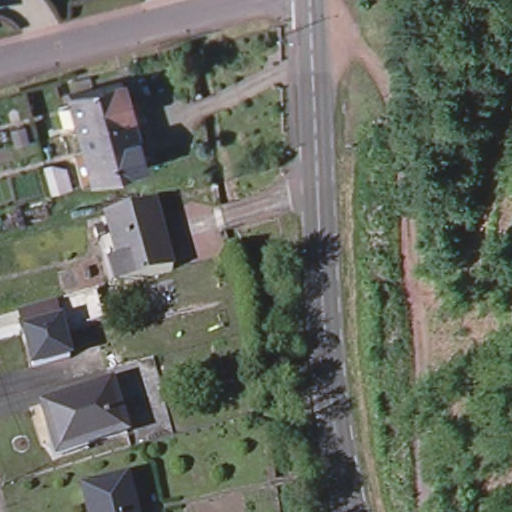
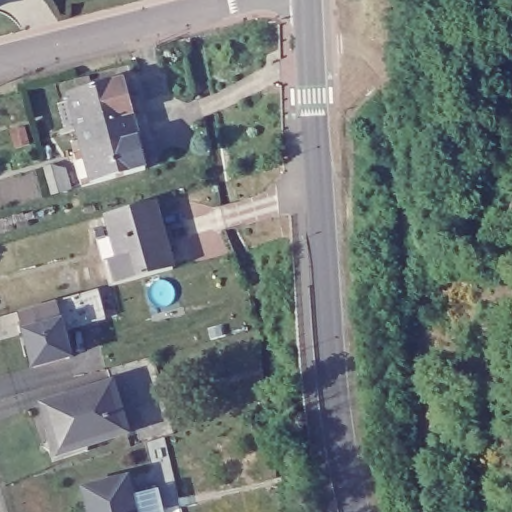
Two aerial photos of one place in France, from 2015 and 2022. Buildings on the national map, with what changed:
unchanged [(68,95),(120,80),(130,115),(78,130),(68,95)]
unchanged [(78,130),(130,115),(136,138),(73,155),(73,153),(83,150),(78,130)]
unchanged [(73,155),(136,138),(143,169),(81,186),(73,155)]
unchanged [(104,214),(153,201),(171,268),(108,285),(103,260),(115,257),(104,214)]
unchanged [(34,375),(24,340),(19,319),(54,309),(60,331),(69,366),(34,375)]
unchanged [(36,407),(105,386),(120,436),(50,456),(36,407)]
unchanged [(133,512),(87,512),(81,487),(86,486),(125,478),(133,512)]

